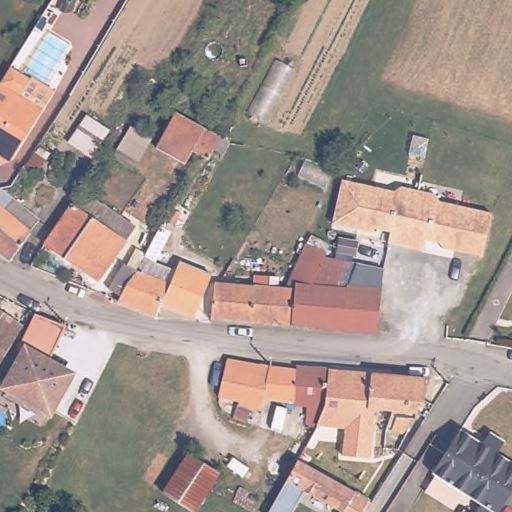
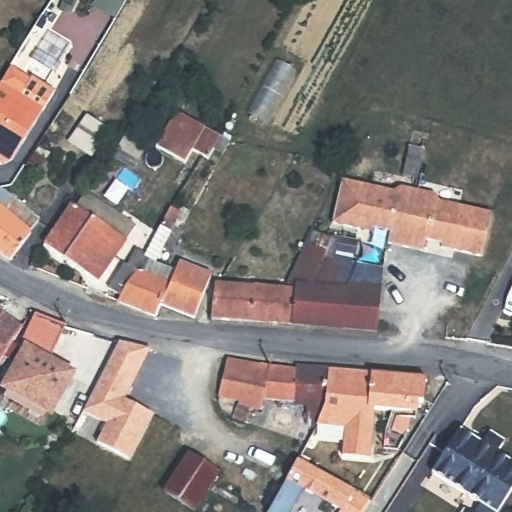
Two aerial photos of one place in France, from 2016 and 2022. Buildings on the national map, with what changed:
unchanged [(0,84),(11,65),(30,77),(18,96),(42,111),(12,160),(0,152),(0,84)]
unchanged [(207,154),(203,152),(192,145),(184,159),(156,142),(175,107),(220,132),(229,134),(221,149),(212,144),(207,154)]
unchanged [(68,143),(86,115),(109,129),(91,157),(68,143)]
unchanged [(111,157),(130,126),(145,134),(125,166),(111,157)]
unchanged [(22,167),(36,145),(49,154),(36,175),(22,167)]
unchanged [(425,239),(423,250),(387,242),(390,231),(373,227),(372,231),(360,229),(335,223),(332,222),(341,180),(393,191),(400,186),(434,194),(439,201),(491,212),(481,256),(453,249),(441,247),(442,242),(425,239)]
unchanged [(38,218),(29,231),(31,232),(10,261),(7,261),(0,254),(0,188),(0,187),(38,218)]
unchanged [(44,244),(81,190),(134,228),(99,282),(44,244)]
unchanged [(128,258),(141,266),(170,214),(178,220),(160,257),(180,266),(183,257),(215,271),(198,313),(165,300),(160,311),(122,295),(125,291),(112,283),(128,258)]
unchanged [(214,315),(219,277),(227,278),(292,283),(311,239),(331,247),(329,252),(362,258),(358,267),(353,282),(385,283),(382,327),(214,315)]
unchanged [(0,364),(0,311),(22,327),(0,364)]
unchanged [(67,376),(48,411),(8,389),(27,354),(20,350),(33,325),(38,315),(66,326),(59,338),(45,364),(67,376)]
new [(118,342),(123,343),(150,350),(124,400),(151,414),(127,459),(96,443),(106,423),(82,412),(118,342)]
unchanged [(223,397),(232,360),(253,362),(269,363),(280,366),(332,370),(330,403),(328,407),(320,424),(318,427),(305,422),(311,402),(268,398),(265,409),(254,407),(249,422),(237,418),(243,401),(223,397)]
unchanged [(427,403),(423,402),(422,413),(415,412),(409,436),(391,428),(397,411),(378,409),(376,430),(320,424),(328,407),(330,403),(332,370),(370,372),(430,377),(427,403)]
unchanged [(493,432),(509,442),(502,453),(512,460),(512,497),(502,512),(479,512),(484,505),(436,473),(464,430),(486,443),(493,432)]
unchanged [(163,488),(187,450),(218,470),(194,509),(163,488)]
unchanged [(304,489),(292,512),(269,512),(286,479),(297,458),(368,500),(361,512),(340,512),(340,511),(304,489)]
unchanged [(468,509),(473,512),(466,512),(468,509)]

